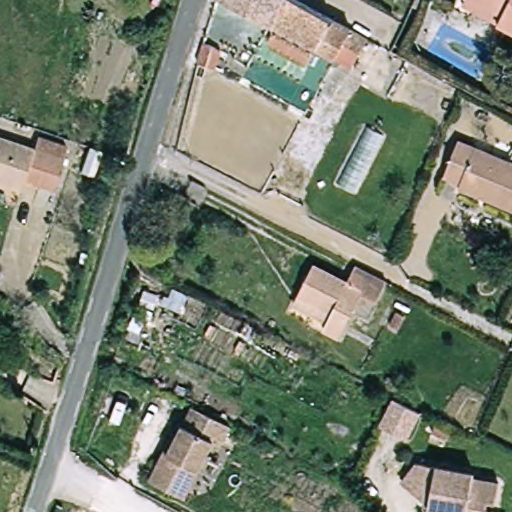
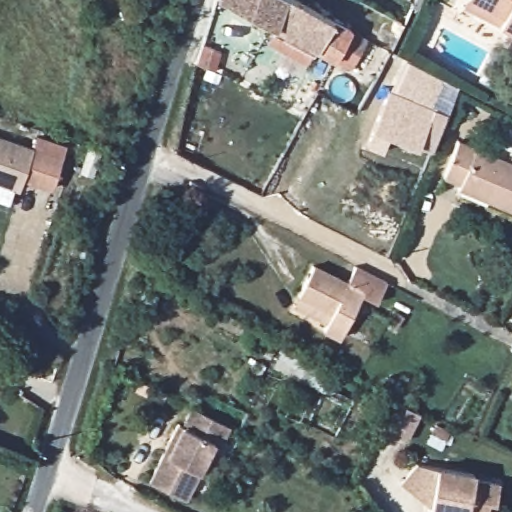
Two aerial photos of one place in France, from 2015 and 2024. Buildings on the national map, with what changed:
unchanged [(256,22),(218,6),(219,0),(305,0),(370,32),(355,65),(301,42),(294,54),(252,32),(256,22)]
unchanged [(460,0),(512,0),(512,27),(460,0)]
unchanged [(216,57),(211,77),(194,69),(199,50),(216,57)]
new [(460,88),(447,114),(432,150),(418,144),(416,147),(391,138),(384,154),(366,146),(373,130),(391,88),(394,90),(409,62),(460,88)]
unchanged [(462,187),(442,179),(457,144),(512,165),(512,210),(491,201),(489,206),(460,194),(462,187)]
unchanged [(20,197),(0,189),(0,145),(32,156),(35,146),(66,156),(62,166),(52,197),(23,187),(20,197)]
unchanged [(386,281),(375,302),(362,296),(342,337),(325,330),(333,313),(300,297),(316,265),(349,281),(357,266),(386,281)]
unchanged [(396,440),(375,430),(388,403),(409,412),(396,440)]
unchanged [(178,423),(183,425),(191,409),(230,427),(221,445),(214,441),(182,502),(147,483),(178,423)]
unchanged [(480,489),(506,492),(503,512),(495,511),(494,512),(435,512),(408,492),(421,472),(434,476),(481,483),(480,489)]

